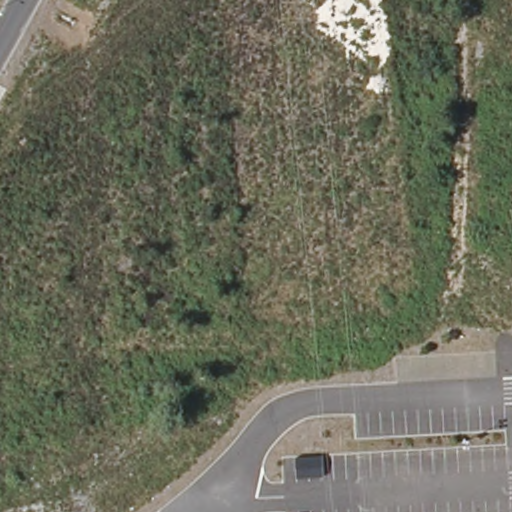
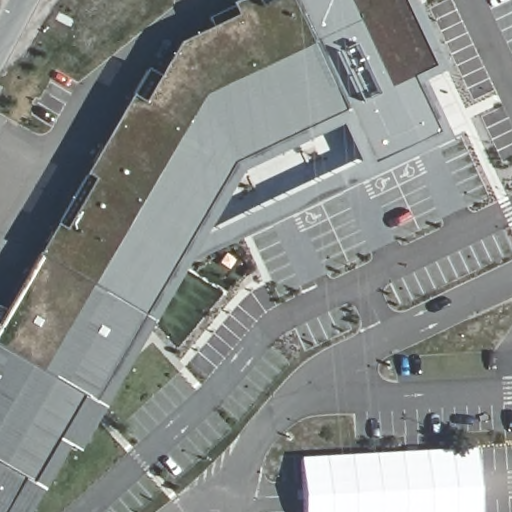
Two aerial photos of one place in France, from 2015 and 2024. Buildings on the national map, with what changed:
new [(0,315),(131,94),(147,67),(159,75),(144,101),(179,41),(238,17),(233,5),(245,0),(404,0),(437,70),(414,80),(439,137),(369,167),(346,118),(236,162),(95,401),(0,345),(0,315)]
new [(33,485),(25,480),(0,465),(0,348),(84,397),(33,485)]
new [(40,489),(33,485),(84,397),(101,407),(78,451),(66,445),(40,489)]
new [(0,465),(25,480),(33,485),(40,489),(27,512),(0,512),(0,465)]

